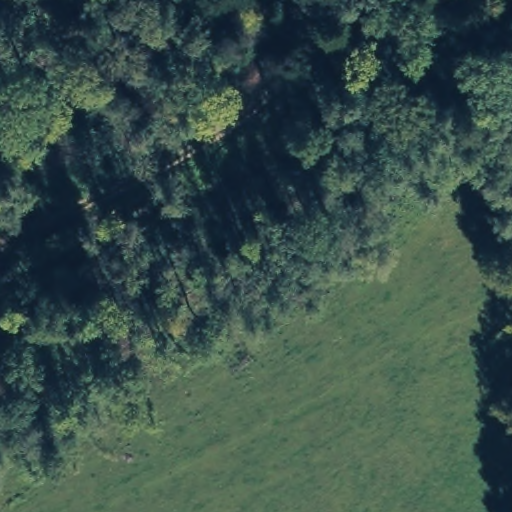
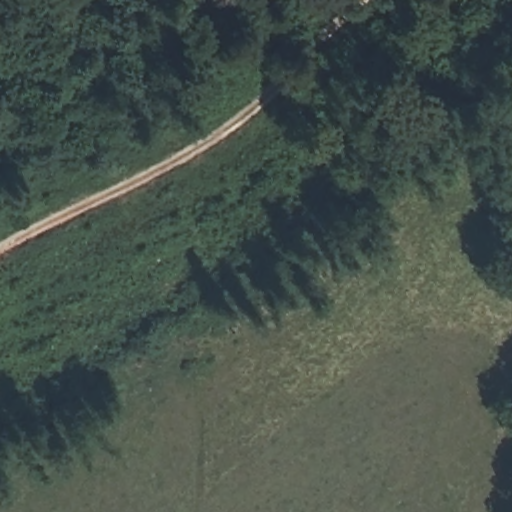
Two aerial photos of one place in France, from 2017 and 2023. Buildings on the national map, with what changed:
[]

